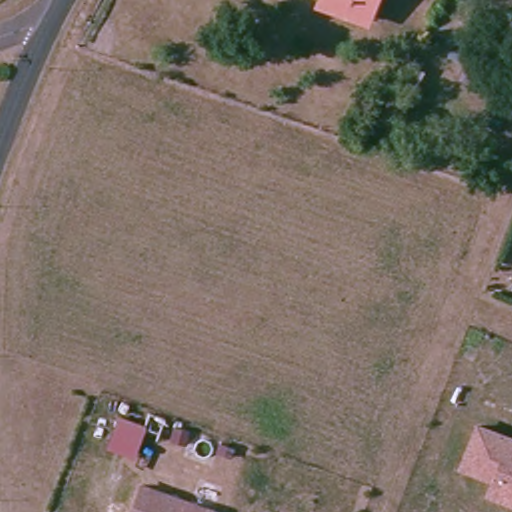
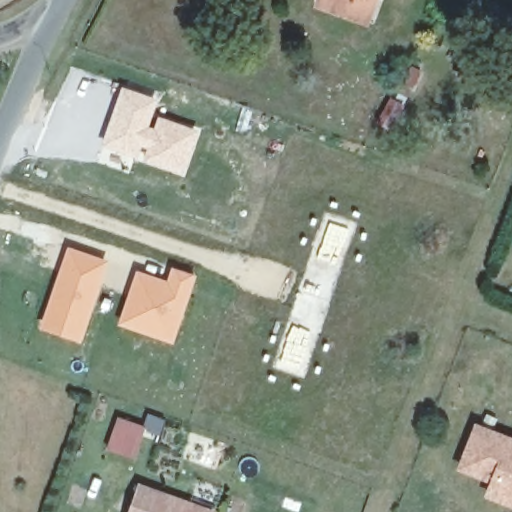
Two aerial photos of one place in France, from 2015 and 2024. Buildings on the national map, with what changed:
unchanged [(368,21),(319,3),(321,0),(376,0),(368,21)]
new [(121,85),(158,97),(153,113),(200,128),(183,175),(100,145),(121,85)]
new [(66,245),(109,259),(81,342),(39,327),(66,245)]
new [(136,268),(166,278),(171,265),(197,273),(173,344),(117,324),(136,268)]
unchanged [(143,430),(133,458),(107,450),(117,420),(143,430)]
unchanged [(512,502),(489,494),(495,479),(462,467),(477,426),(512,440),(512,502)]
unchanged [(207,512),(133,512),(140,489),(207,512)]

